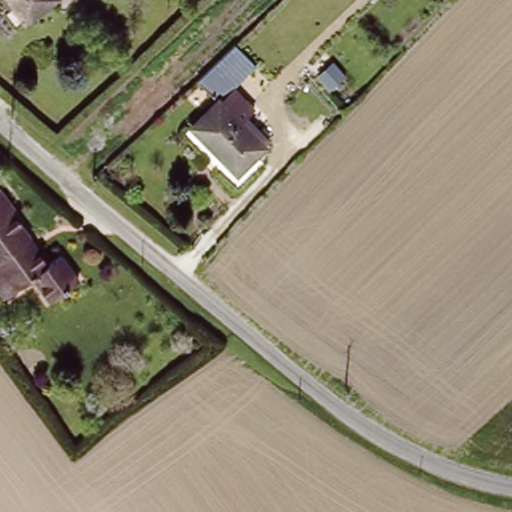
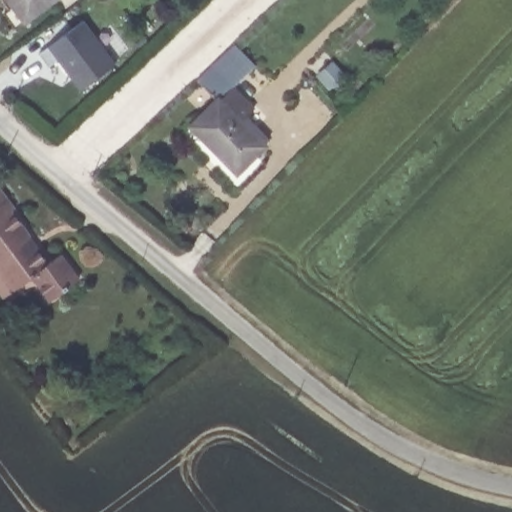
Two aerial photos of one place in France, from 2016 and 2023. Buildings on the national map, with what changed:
unchanged [(31,18),(16,0),(54,0),(31,18)]
new [(83,21),(115,64),(81,90),(49,46),(83,21)]
unchanged [(249,75),(221,102),(243,125),(249,120),(272,144),(254,160),(262,168),(249,181),(242,173),(231,162),(227,164),(193,128),(220,103),(199,81),(229,53),(249,75)]
new [(335,63),(347,76),(332,90),(319,77),(335,63)]
unchanged [(0,266),(4,264),(0,259),(0,195),(9,188),(26,211),(24,213),(42,240),(39,241),(57,266),(69,257),(87,284),(57,305),(39,278),(22,290),(8,300),(0,288),(0,266)]

